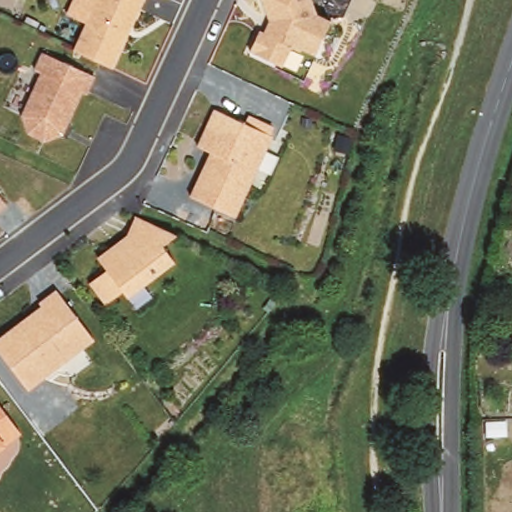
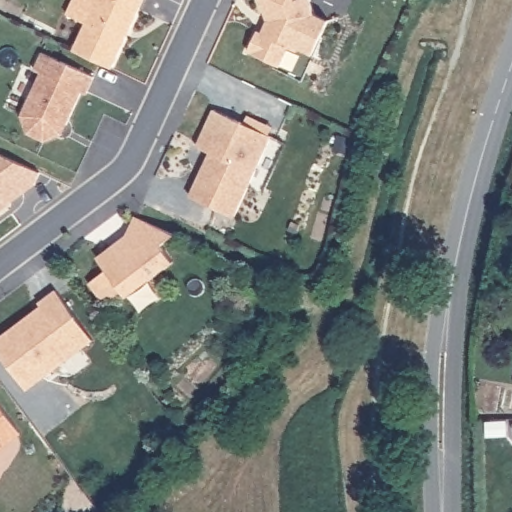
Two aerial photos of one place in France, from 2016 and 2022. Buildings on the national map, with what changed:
unchanged [(70,46),(90,0),(143,0),(111,66),(70,46)]
unchanged [(251,47),(266,15),(261,0),(311,0),(315,10),(331,18),(315,53),(292,44),(283,65),(251,47)]
unchanged [(89,92),(83,90),(66,130),(47,139),(27,132),(20,112),(39,71),(32,66),(41,49),(96,73),(89,92)]
unchanged [(194,190),(212,148),(197,142),(214,106),(273,132),(237,212),(194,190)]
new [(0,192),(0,154),(40,171),(35,184),(7,204),(0,192)]
unchanged [(7,204),(0,209),(0,192),(7,204)]
unchanged [(90,281),(107,268),(96,254),(120,239),(135,214),(175,231),(161,242),(176,261),(128,296),(124,288),(105,303),(90,281)]
unchanged [(0,349),(0,338),(59,292),(97,339),(27,388),(0,349)]
unchanged [(22,435),(0,450),(0,404),(22,435)]

